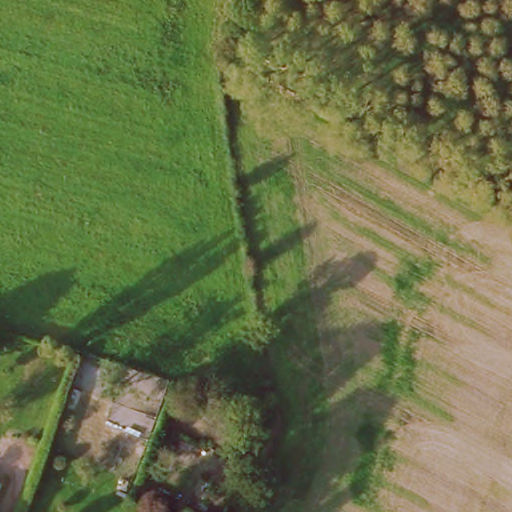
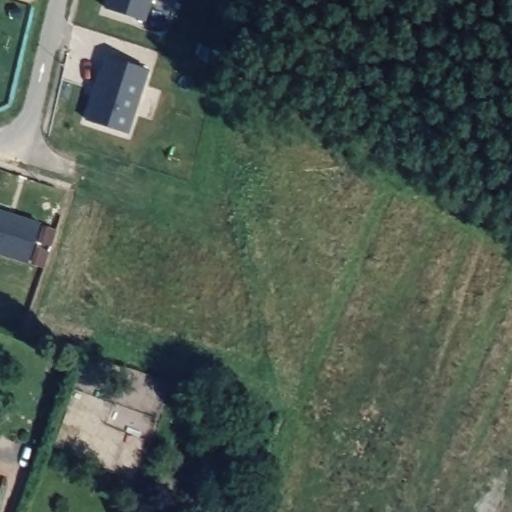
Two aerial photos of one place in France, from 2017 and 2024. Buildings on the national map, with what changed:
new [(105,7),(107,0),(150,0),(144,19),(105,7)]
new [(147,68),(126,132),(87,119),(96,89),(95,89),(101,69),(102,69),(107,54),(147,68)]
new [(28,261),(0,252),(0,209),(41,223),(28,261)]

